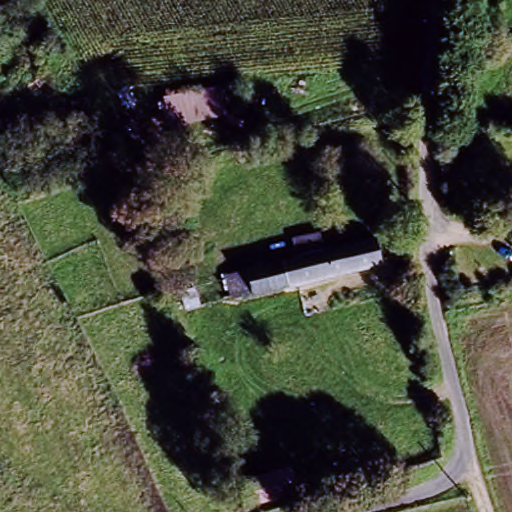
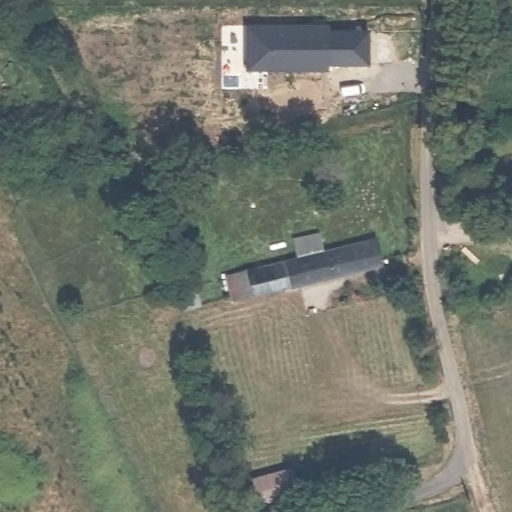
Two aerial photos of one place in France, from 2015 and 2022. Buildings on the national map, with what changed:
new [(246,28),(327,28),(327,33),(369,33),(368,66),(327,66),(327,71),(246,72),(246,28)]
demolished [(166,126),(160,92),(224,81),(229,115),(166,126)]
unchanged [(380,266),(247,302),(240,277),(304,259),(298,243),(320,236),(325,254),(373,240),(380,266)]
unchanged [(247,486),(298,472),(306,496),(254,512),(247,486)]

